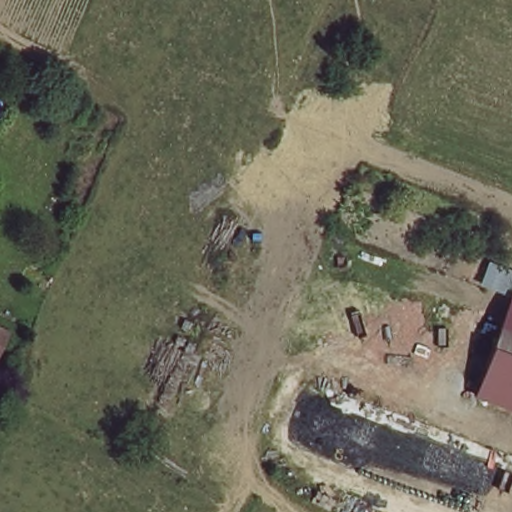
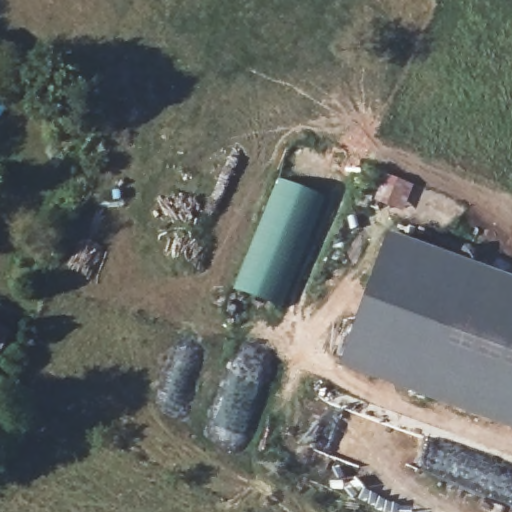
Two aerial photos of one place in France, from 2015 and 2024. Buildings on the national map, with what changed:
new [(232,290),(275,180),(323,197),(280,309),(232,290)]
new [(389,231),(512,276),(512,430),(339,367),(389,231)]
demolished [(508,311),(512,313),(512,409),(478,399),(508,311)]
unchanged [(0,362),(0,331),(13,337),(0,362)]

